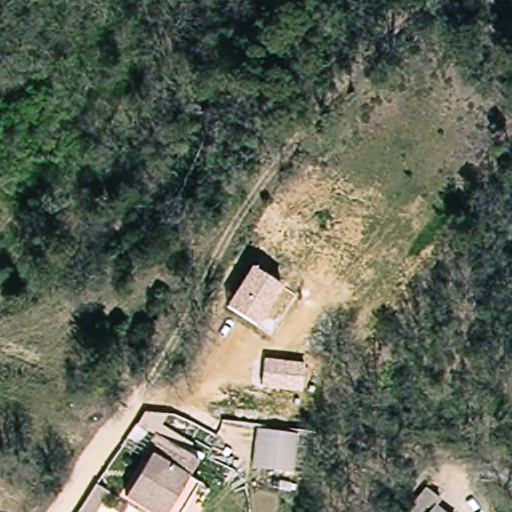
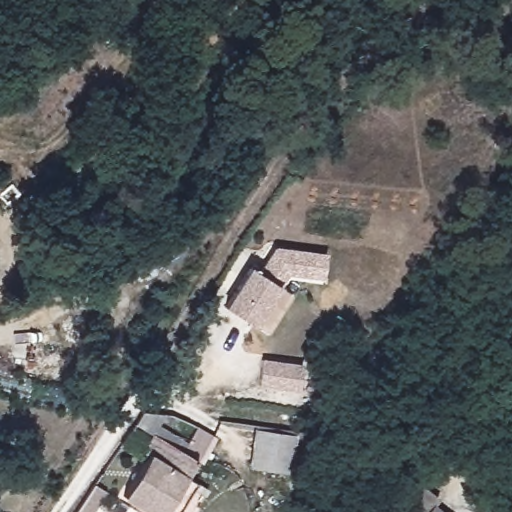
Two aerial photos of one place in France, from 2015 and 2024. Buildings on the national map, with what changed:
new [(275,247),(327,254),(323,281),(287,276),(278,286),(256,272),(275,247)]
unchanged [(253,325),(225,306),(248,267),(278,286),(253,325)]
unchanged [(299,392),(259,385),(261,360),(301,363),(299,392)]
unchanged [(300,434),(294,476),(255,472),(261,429),(300,434)]
unchanged [(163,512),(154,512),(125,493),(149,456),(143,450),(153,436),(195,462),(163,512)]
unchanged [(417,511),(443,485),(453,498),(443,506),(448,512),(403,512),(409,505),(417,511)]

